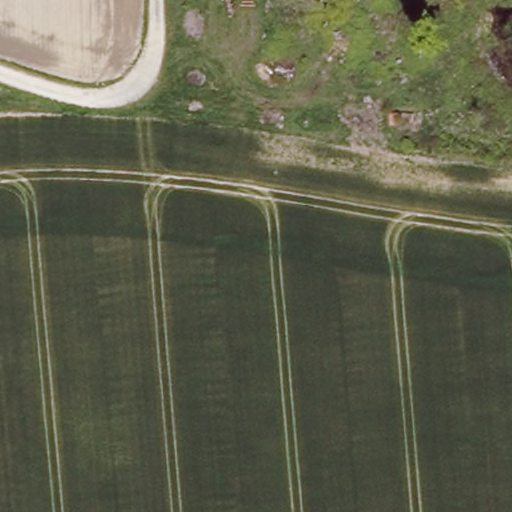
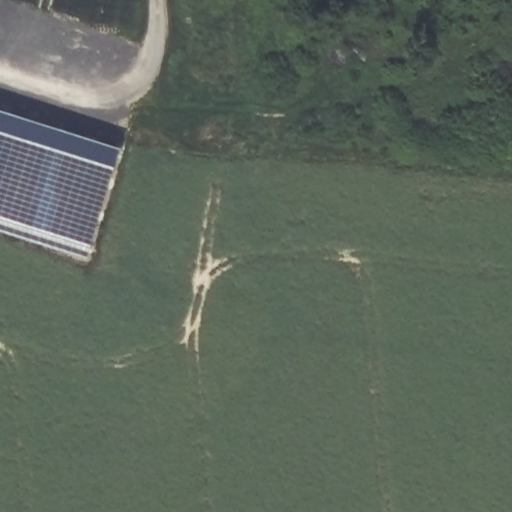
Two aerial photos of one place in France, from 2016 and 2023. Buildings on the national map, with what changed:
new [(112,149),(80,248),(0,222),(0,113),(112,149)]

